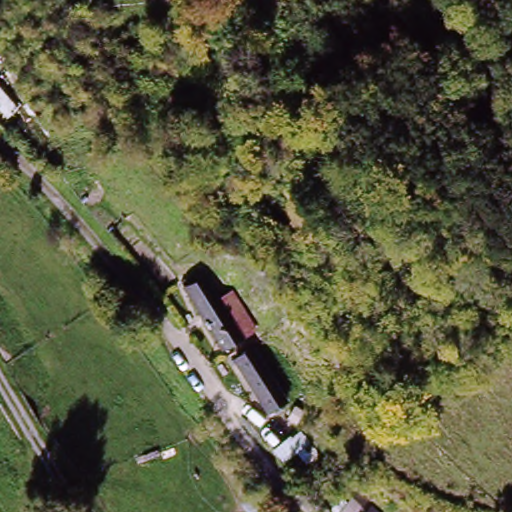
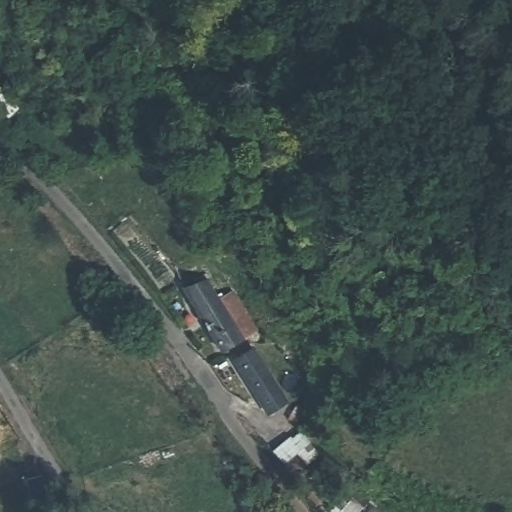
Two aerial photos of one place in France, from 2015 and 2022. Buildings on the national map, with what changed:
unchanged [(25,109),(14,122),(0,110),(0,85),(25,109)]
unchanged [(177,292),(197,279),(210,299),(222,291),(252,336),(238,344),(218,358),(177,292)]
unchanged [(263,414),(232,365),(252,354),(282,402),(263,414)]
unchanged [(275,451),(302,431),(325,463),(295,486),(275,451)]

